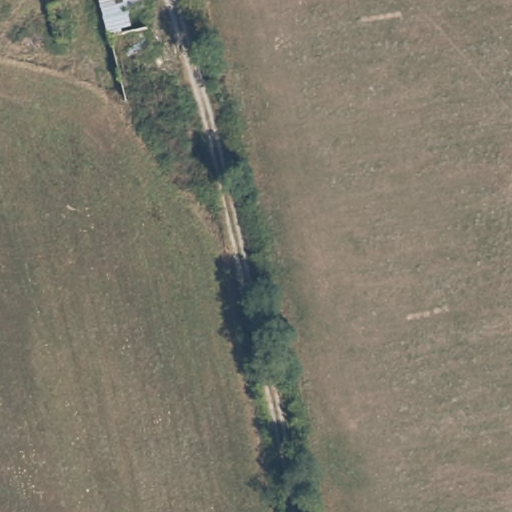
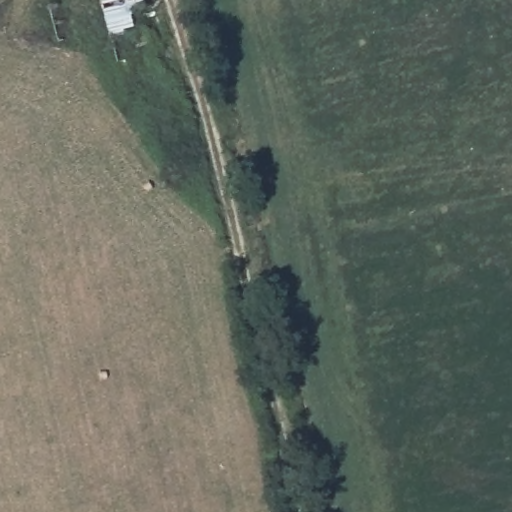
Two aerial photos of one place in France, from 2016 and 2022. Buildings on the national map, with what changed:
unchanged [(95,0),(135,0),(123,7),(130,27),(105,36),(95,0)]

